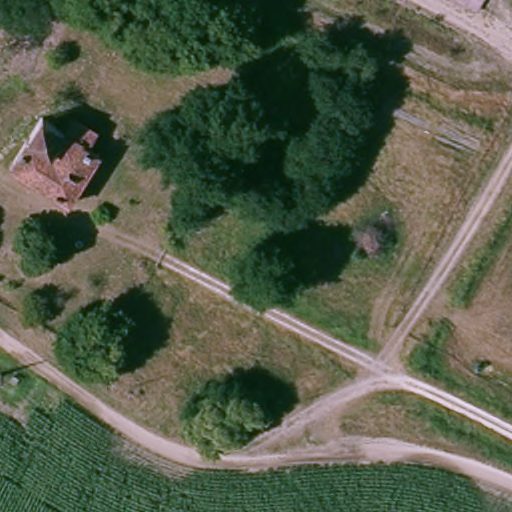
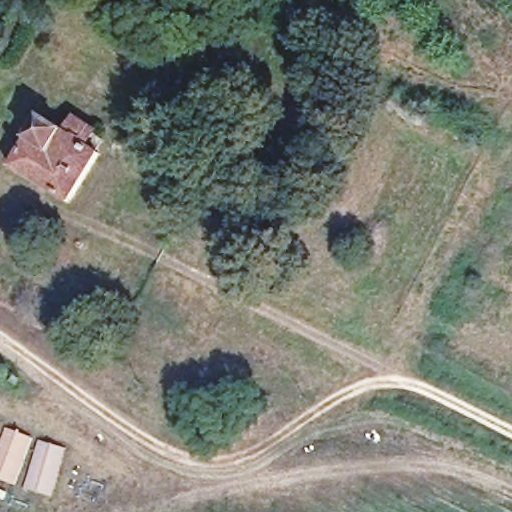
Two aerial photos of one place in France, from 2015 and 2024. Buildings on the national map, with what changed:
unchanged [(69,191),(14,156),(51,96),(107,130),(69,191)]
new [(15,485),(0,479),(0,443),(5,430),(32,440),(15,485)]
new [(39,441),(65,449),(51,496),(24,488),(39,441)]

